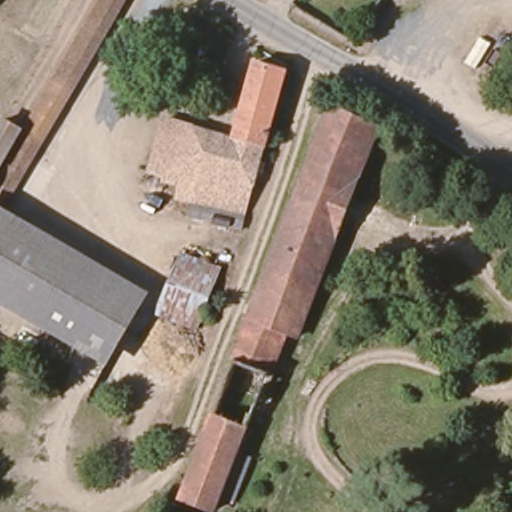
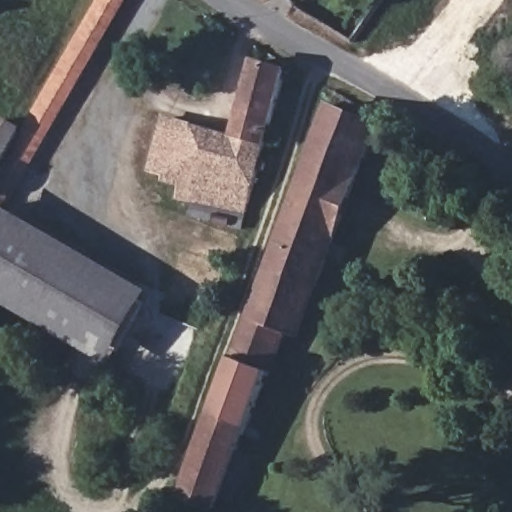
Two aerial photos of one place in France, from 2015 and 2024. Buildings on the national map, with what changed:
unchanged [(26,130),(102,0),(124,0),(2,206),(0,205),(0,173),(26,130)]
unchanged [(246,224),(175,209),(178,189),(162,184),(164,176),(144,171),(152,143),(162,112),(232,130),(255,55),(291,66),(246,224)]
unchanged [(234,352),(332,100),(381,123),(301,344),(286,336),(274,365),(234,352)]
unchanged [(1,114),(26,130),(0,173),(0,115),(1,114)]
unchanged [(2,206),(27,221),(0,267),(0,205),(2,206)]
unchanged [(146,293),(119,340),(0,269),(0,267),(27,221),(146,293)]
unchanged [(174,282),(193,232),(232,247),(202,325),(163,309),(164,308),(174,282)]
unchanged [(119,340),(105,363),(0,302),(0,269),(119,340)]
unchanged [(247,424),(222,511),(177,495),(211,409),(247,424)]

